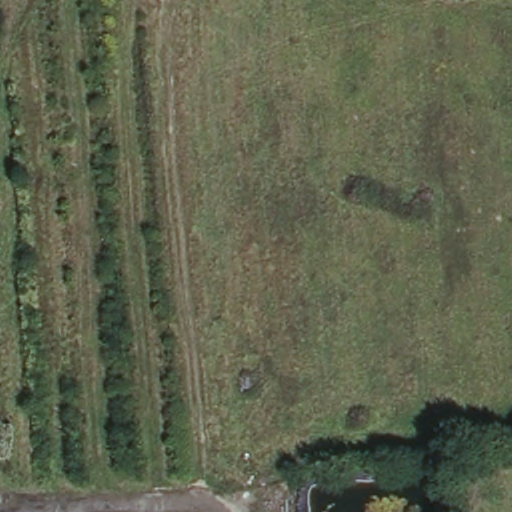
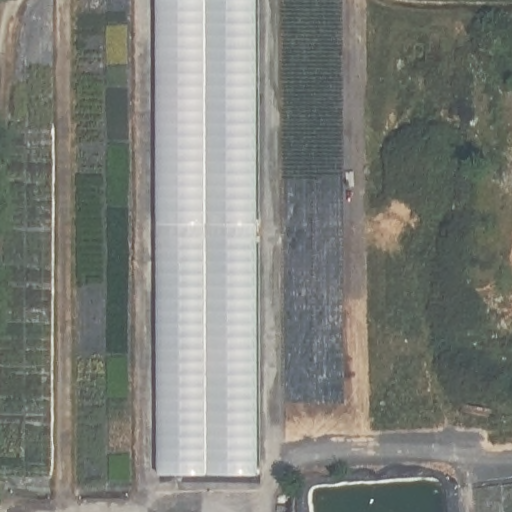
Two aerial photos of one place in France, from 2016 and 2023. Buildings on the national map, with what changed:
new [(259,475),(157,475),(156,0),(258,0),(259,475)]

